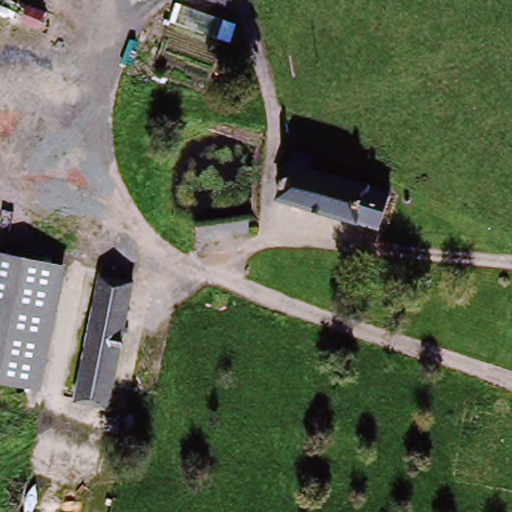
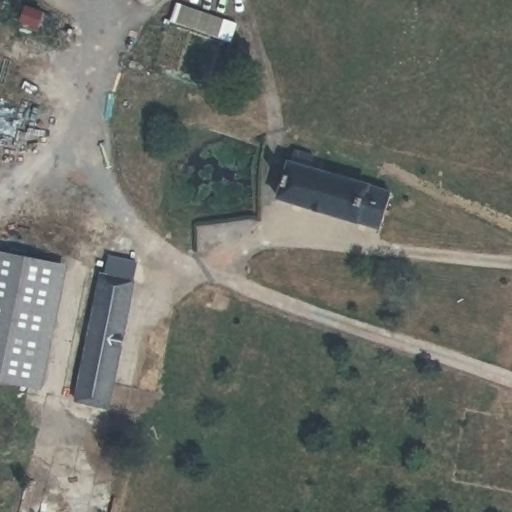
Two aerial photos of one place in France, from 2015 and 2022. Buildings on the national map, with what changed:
unchanged [(379,236),(281,205),(296,156),(314,162),(310,176),(389,201),(379,236)]
unchanged [(0,384),(0,254),(68,265),(40,392),(0,384)]
unchanged [(75,401),(103,274),(132,280),(105,408),(75,401)]

